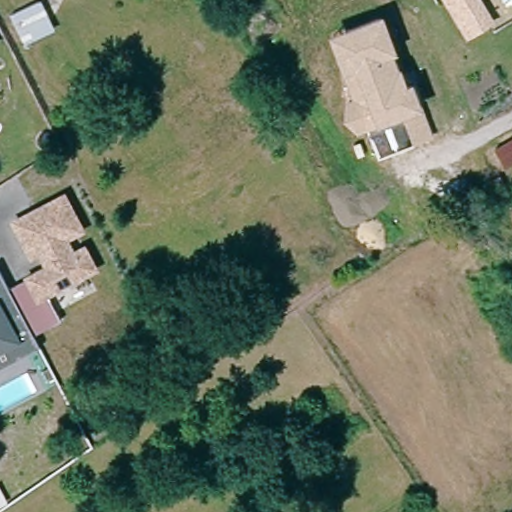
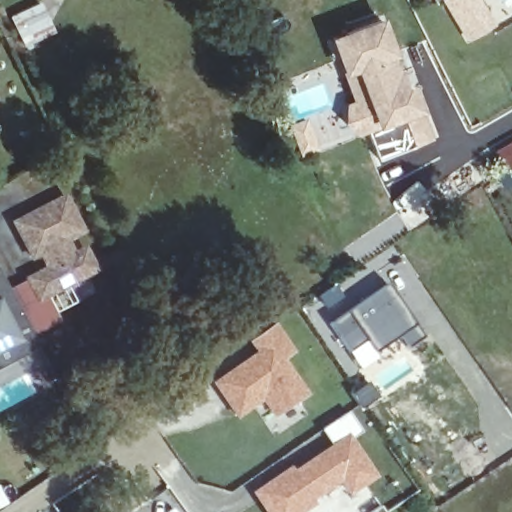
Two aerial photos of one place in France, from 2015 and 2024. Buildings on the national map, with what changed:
unchanged [(467,36),(445,0),(474,0),(480,10),(488,22),(467,36)]
unchanged [(23,44),(20,36),(10,13),(36,1),(46,23),(50,31),(23,44)]
unchanged [(416,142),(380,157),(367,126),(358,129),(348,103),(357,100),(345,68),(332,36),(345,31),(380,17),(393,50),(389,51),(403,87),(411,84),(419,105),(431,137),(416,142)]
new [(299,155),(290,136),(305,129),(318,156),(313,158),(303,163),(299,155)]
unchanged [(512,139),(512,163),(507,166),(497,149),(512,139)]
unchanged [(75,231),(70,234),(59,240),(67,255),(79,249),(89,270),(33,299),(23,278),(43,268),(35,252),(27,257),(9,223),(58,197),(69,219),(75,231)]
unchanged [(23,278),(33,299),(46,292),(60,320),(34,335),(41,347),(0,367),(0,269),(9,287),(23,278)]
new [(384,282),(423,337),(407,348),(398,337),(375,353),(345,310),(384,282)]
new [(345,310),(375,353),(377,357),(359,371),(325,323),(345,310)]
new [(253,352),(247,341),(276,321),(299,352),(288,360),(312,393),(273,419),(261,404),(237,422),(210,382),(253,352)]
new [(329,445),(319,429),(349,411),(364,433),(355,439),(378,475),(349,498),(340,487),(306,512),(264,512),(250,492),(290,465),(293,468),(329,445)]

